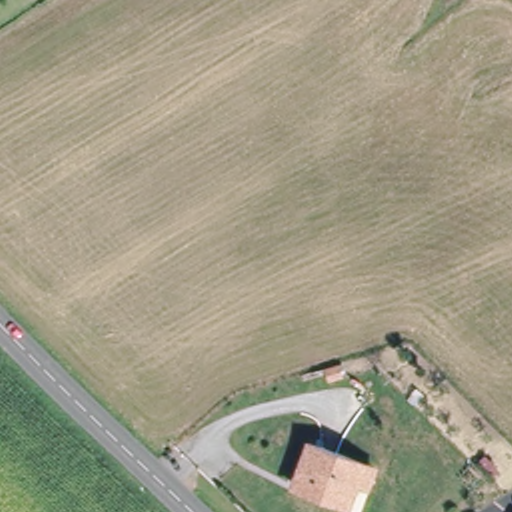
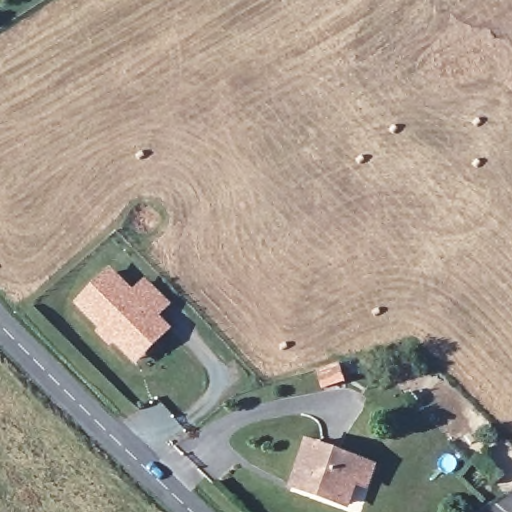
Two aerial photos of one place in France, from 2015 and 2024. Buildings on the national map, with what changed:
new [(110,268),(133,290),(145,278),(171,307),(160,318),(173,330),(136,366),(112,344),(109,347),(95,333),(99,329),(73,305),(110,268)]
unchanged [(296,485),(312,443),(365,463),(377,467),(370,486),(358,482),(350,504),(330,497),(316,492),(296,485)]

